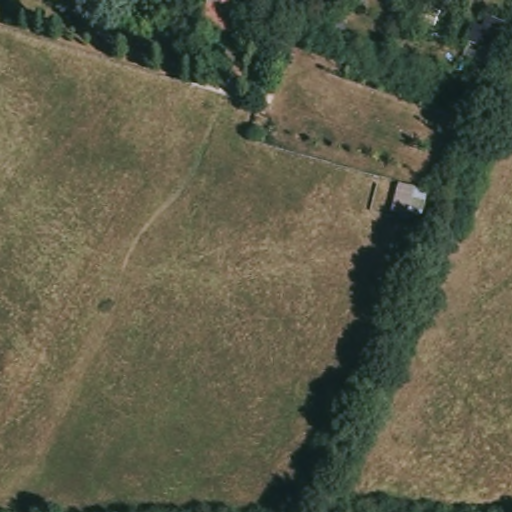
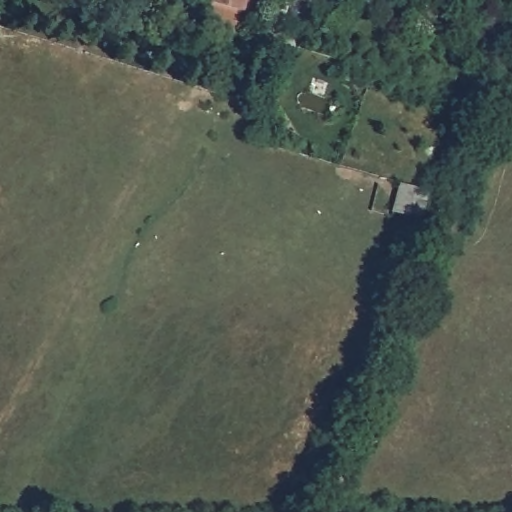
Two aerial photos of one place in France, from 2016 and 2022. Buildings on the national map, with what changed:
unchanged [(242,16),(207,6),(208,0),(247,0),(242,16)]
unchanged [(274,0),(274,2),(264,0),(274,0)]

